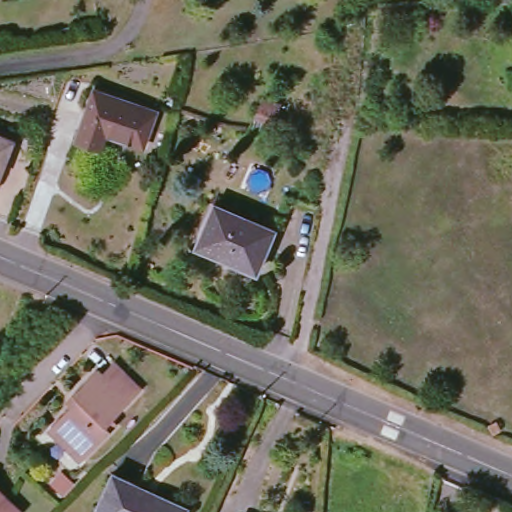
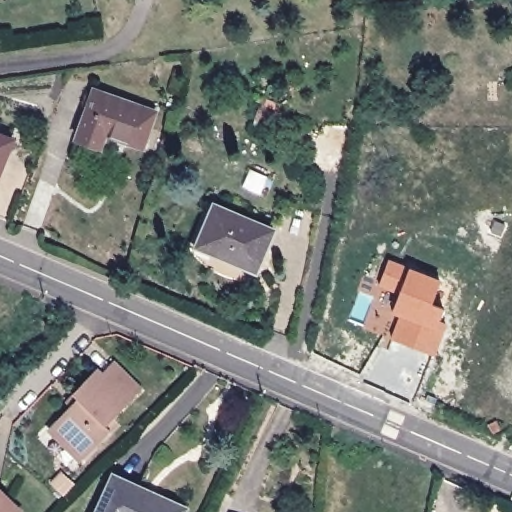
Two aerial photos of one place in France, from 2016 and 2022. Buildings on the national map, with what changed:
unchanged [(77,134),(95,84),(155,106),(143,142),(107,129),(102,143),(77,134)]
unchanged [(13,139),(0,175),(0,134),(13,139)]
unchanged [(197,246),(215,205),(274,229),(257,270),(197,246)]
new [(392,264),(442,284),(433,308),(445,313),(441,322),(448,324),(435,358),(395,342),(404,317),(396,313),(404,295),(385,287),(392,264)]
unchanged [(54,426),(82,397),(77,392),(100,368),(105,373),(116,362),(144,388),(109,424),(114,428),(86,457),(54,426)]
unchanged [(115,475),(185,507),(183,512),(98,512),(115,475)]
unchanged [(24,512),(0,512),(0,488),(24,512)]

